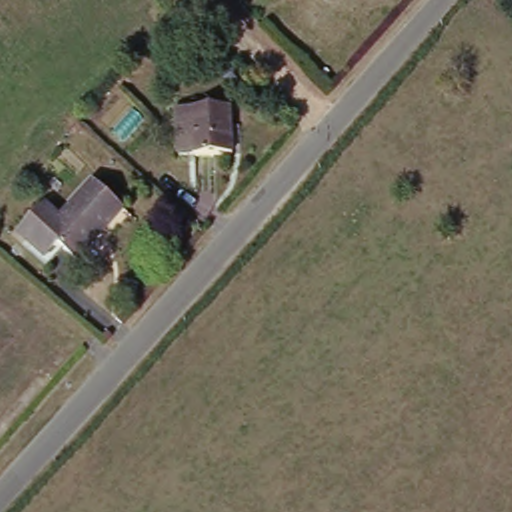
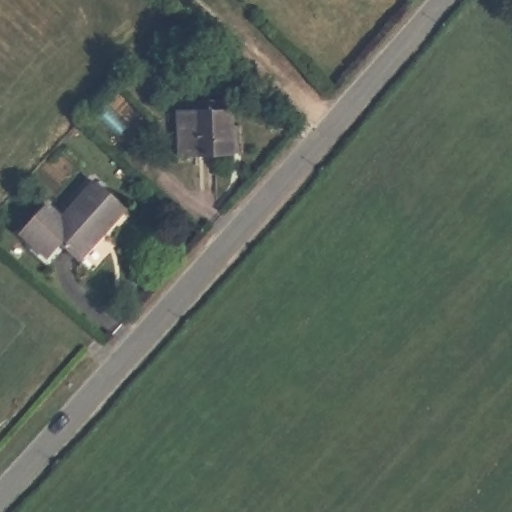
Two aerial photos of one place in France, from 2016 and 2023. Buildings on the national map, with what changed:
unchanged [(240,107),(243,150),(178,155),(177,112),(240,107)]
unchanged [(131,215),(85,266),(64,247),(51,262),(22,239),(49,210),(66,224),(97,187),(131,215)]

